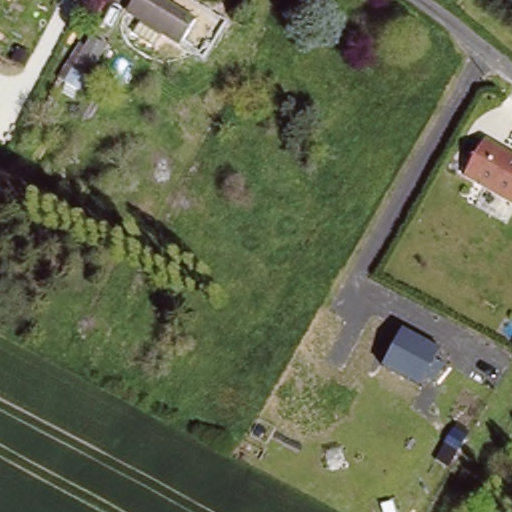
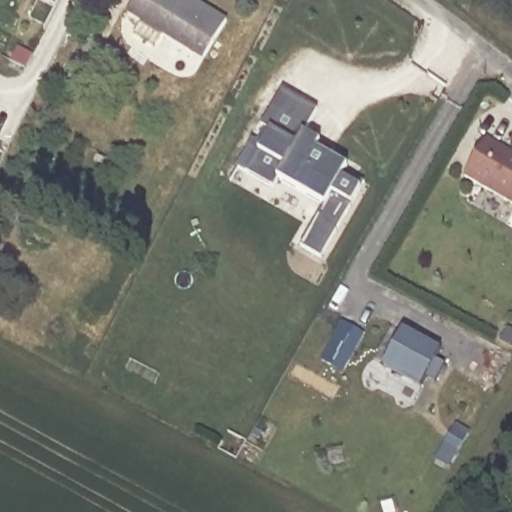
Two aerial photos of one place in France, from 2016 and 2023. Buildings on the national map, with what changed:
unchanged [(183,38),(164,28),(155,44),(131,31),(141,15),(127,8),(131,0),(172,0),(196,13),(183,38)]
unchanged [(63,83),(79,50),(87,54),(93,41),(106,47),(84,93),(63,83)]
new [(322,204),(278,180),(273,188),(247,174),(248,172),(237,166),(248,146),(258,151),(270,130),(262,126),(282,91),(317,110),(302,134),(319,144),(333,151),(328,158),(346,169),(344,171),(364,182),(359,189),(351,203),(321,258),(301,247),(322,204)]
unchanged [(512,203),(464,176),(486,137),(512,152),(512,203)]
unchanged [(404,326),(444,346),(421,385),(382,365),(404,326)]
new [(457,430),(469,437),(457,458),(444,451),(457,430)]

